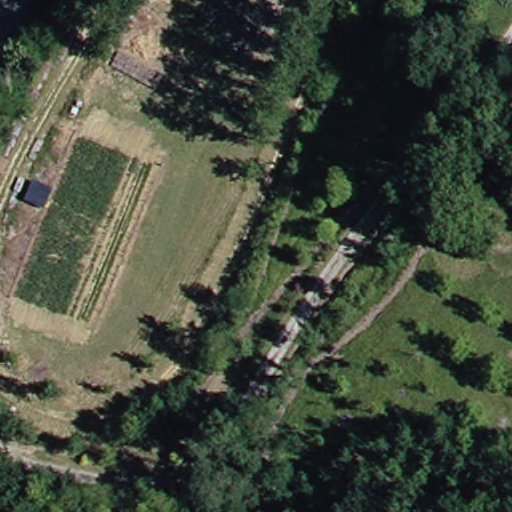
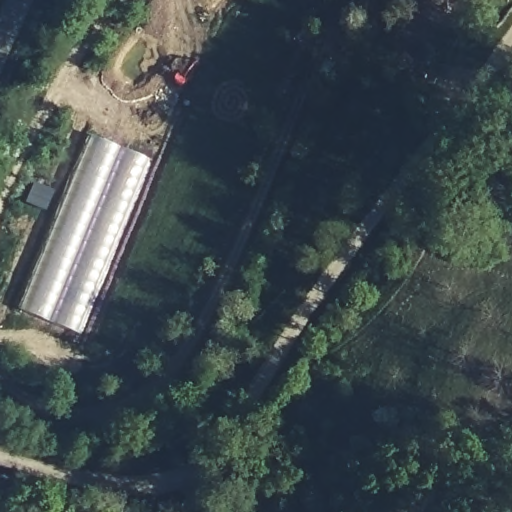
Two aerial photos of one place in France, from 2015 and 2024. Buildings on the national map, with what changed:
new [(78,336),(17,312),(88,136),(148,161),(78,336)]

